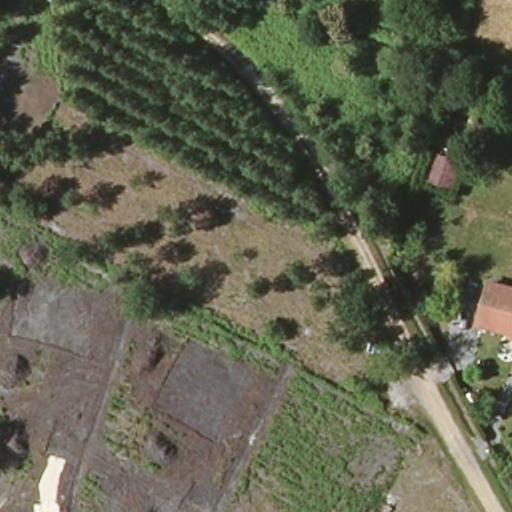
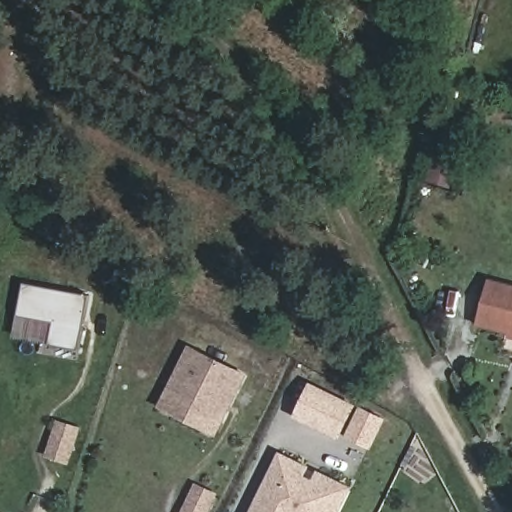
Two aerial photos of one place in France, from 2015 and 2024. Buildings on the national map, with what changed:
unchanged [(512,331),(478,322),(489,280),(512,286),(512,331)]
new [(50,344),(54,323),(19,316),(25,283),(91,296),(81,350),(50,344)]
new [(158,406),(188,344),(248,373),(217,436),(158,406)]
new [(338,437),(326,431),(297,417),(312,388),(340,402),(352,408),(338,437)]
new [(361,413),(382,422),(369,447),(349,437),(361,413)]
new [(60,425),(78,431),(68,461),(50,456),(60,425)]
new [(307,469),(299,485),(313,491),(321,476),(349,489),(338,512),(255,512),(282,457),(307,469)]
new [(214,499),(207,512),(186,512),(197,491),(214,499)]

